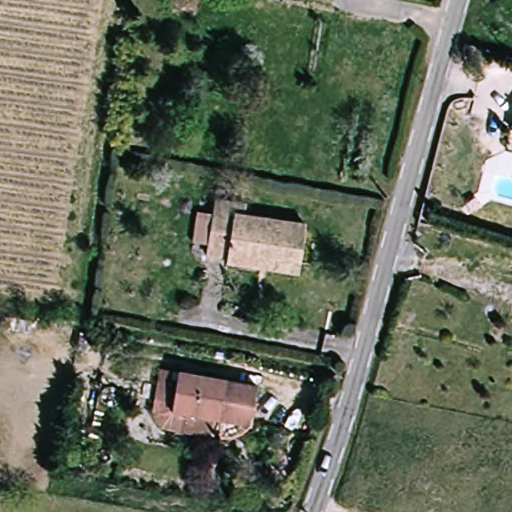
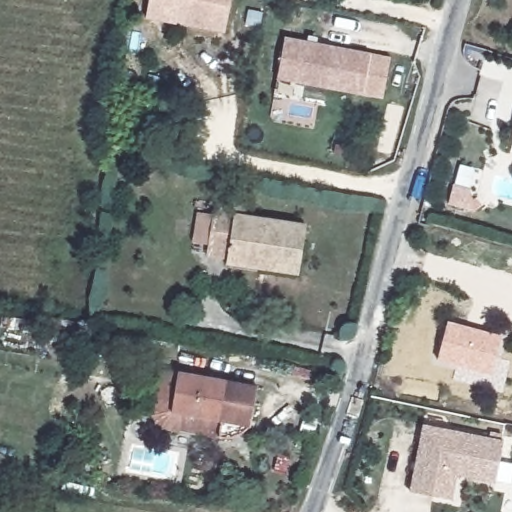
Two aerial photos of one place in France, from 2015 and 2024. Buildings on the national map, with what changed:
new [(224,35),(146,19),(149,0),(231,0),(224,35)]
new [(370,54),(363,95),(277,79),(285,37),(370,54)]
unchanged [(266,269),(234,265),(236,252),(212,250),(214,237),(204,236),(211,206),(221,209),(223,197),(253,202),(252,214),(311,225),(303,263),(301,274),(266,269)]
new [(491,375),(437,360),(447,320),(502,335),(491,375)]
unchanged [(249,434),(236,443),(167,430),(159,423),(156,413),(163,371),(181,375),(173,413),(252,428),(249,434)]
unchanged [(260,389),(252,428),(173,413),(181,375),(260,389)]
new [(423,424),(504,441),(496,483),(457,476),(454,500),(410,491),(423,424)]

